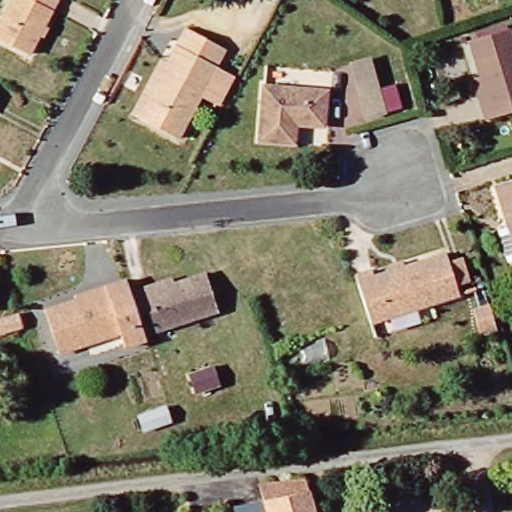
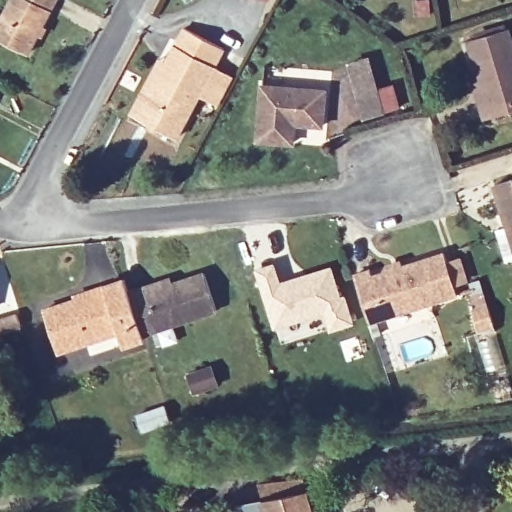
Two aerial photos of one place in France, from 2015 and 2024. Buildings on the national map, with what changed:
unchanged [(19,0),(63,0),(55,15),(32,59),(0,42),(0,37),(19,0)]
unchanged [(239,0),(275,0),(274,5),(239,0)]
unchanged [(160,63),(166,66),(185,32),(224,52),(214,70),(232,79),(218,107),(200,98),(177,141),(138,121),(131,117),(160,63)]
unchanged [(468,44),(509,32),(512,42),(512,114),(484,123),(479,106),(472,82),(479,80),(468,44)]
new [(366,119),(358,95),(349,67),(368,61),(378,89),(385,113),(366,119)]
unchanged [(318,129),(291,126),(289,146),(254,143),(259,88),(321,94),(318,129)]
unchanged [(504,228),(492,188),(512,182),(512,262),(506,264),(495,231),(504,228)]
unchanged [(373,278),(389,273),(388,268),(401,264),(402,269),(444,256),(457,297),(370,324),(355,277),(371,272),(373,278)]
new [(275,261),(282,279),(332,264),(355,323),(327,333),(322,317),(273,331),(253,270),(275,261)]
unchanged [(145,287),(170,279),(172,284),(204,273),(216,310),(143,334),(129,293),(145,287)]
unchanged [(123,347),(118,332),(57,353),(43,311),(75,300),(74,296),(103,286),(125,279),(129,293),(143,334),(145,340),(123,347)]
unchanged [(495,328),(480,332),(474,313),(489,309),(495,328)]
unchanged [(0,335),(0,322),(22,315),(25,327),(0,335)]
unchanged [(167,408),(171,421),(142,431),(137,416),(166,406),(167,408)]
unchanged [(233,512),(261,503),(257,489),(302,486),(311,512),(234,512),(233,512)]

